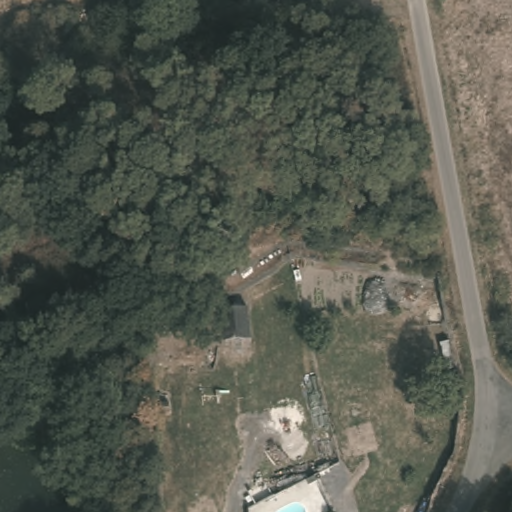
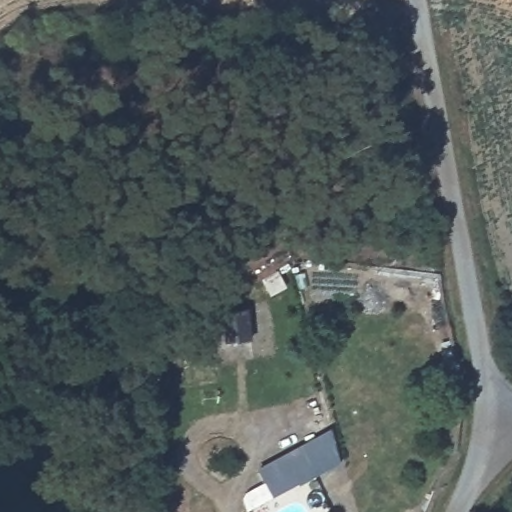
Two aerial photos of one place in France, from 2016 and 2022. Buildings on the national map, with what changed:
unchanged [(251,339),(228,343),(225,311),(247,309),(251,339)]
new [(246,510),(242,499),(244,492),(263,482),(256,468),(323,432),(339,463),(246,510)]

